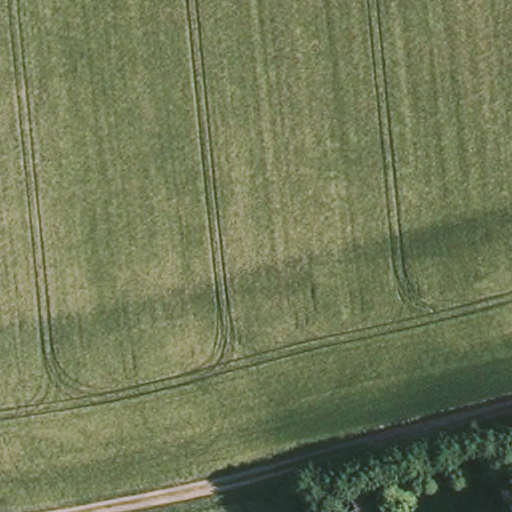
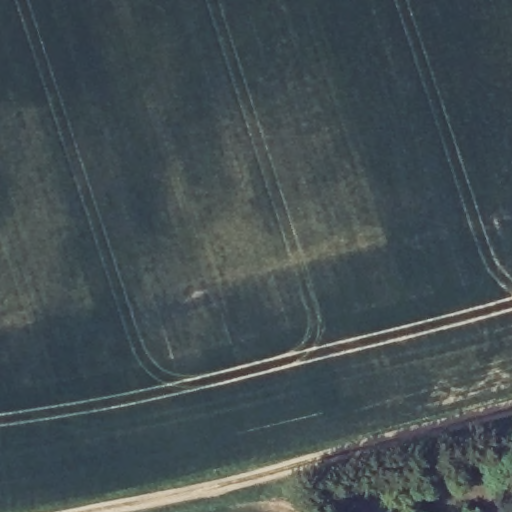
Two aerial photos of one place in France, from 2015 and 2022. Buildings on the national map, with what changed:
unchanged [(372,488),(379,512),(356,512),(348,493),(372,488)]

